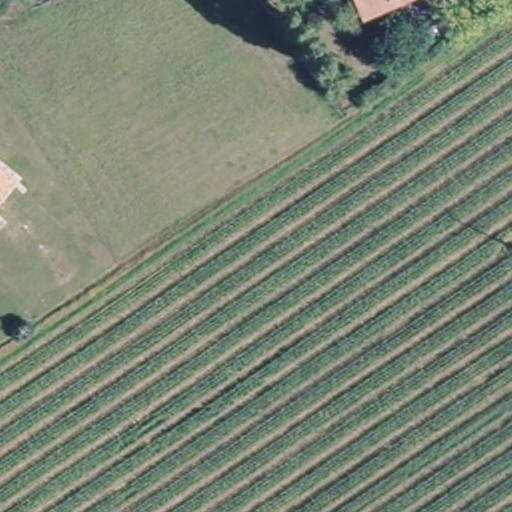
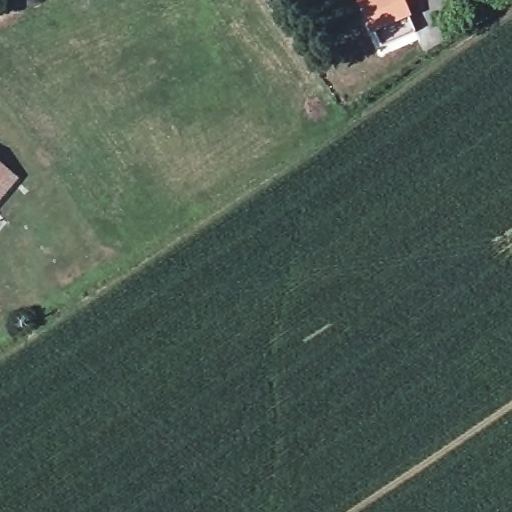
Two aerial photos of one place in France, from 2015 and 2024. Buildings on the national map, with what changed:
unchanged [(353,0),(420,0),(422,4),(389,15),(385,6),(359,15),(353,0)]
unchanged [(13,184),(0,199),(0,174),(13,184)]

